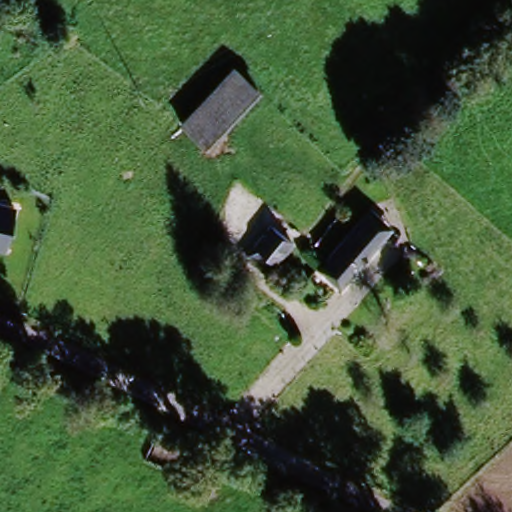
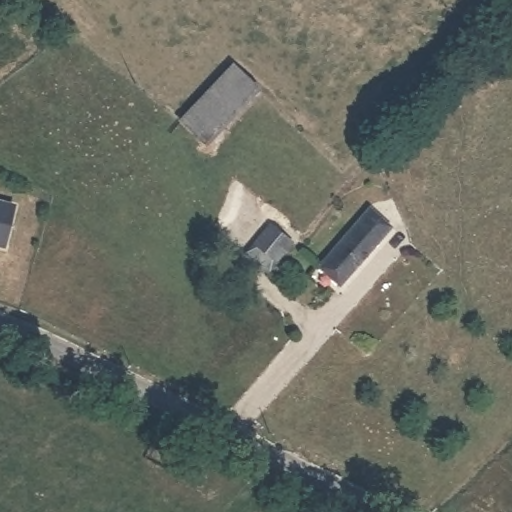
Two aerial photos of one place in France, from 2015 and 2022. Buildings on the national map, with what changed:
unchanged [(205,148),(196,139),(186,130),(180,124),(233,70),(257,94),(205,148)]
unchanged [(4,246),(0,245),(0,202),(12,205),(4,246)]
unchanged [(375,218),(390,235),(331,287),(316,270),(375,218)]
unchanged [(273,233),(290,250),(265,272),(247,255),(263,241),(273,233)]

